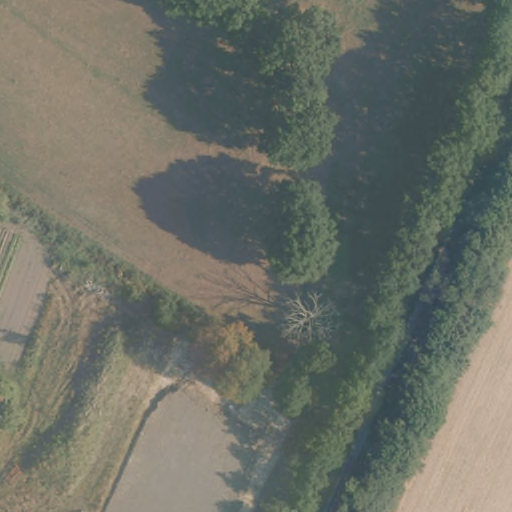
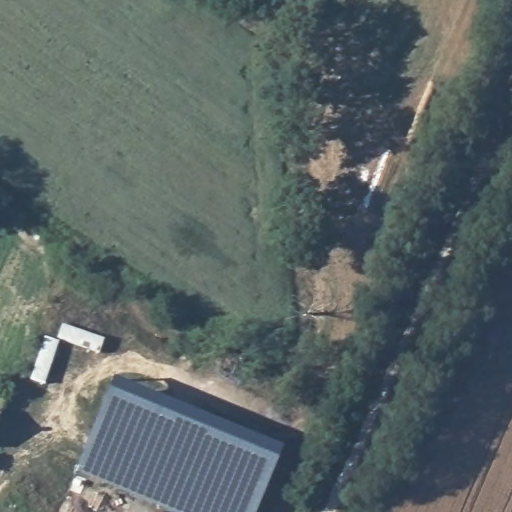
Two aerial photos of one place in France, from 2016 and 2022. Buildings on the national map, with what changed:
new [(115,380),(282,451),(257,512),(173,512),(76,471),(115,380)]
unchanged [(5,387),(0,405),(0,387),(1,387),(5,387)]

